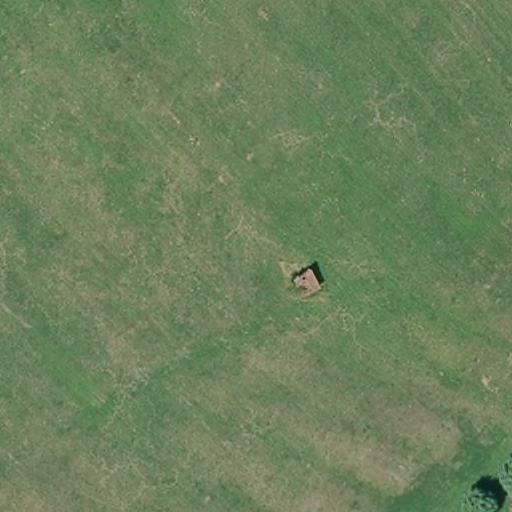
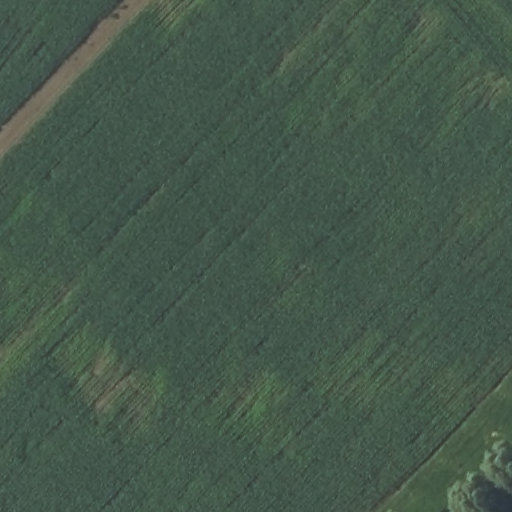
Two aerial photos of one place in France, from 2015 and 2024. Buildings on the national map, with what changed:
unchanged [(316,271),(328,291),(306,305),(293,284),(316,271)]

